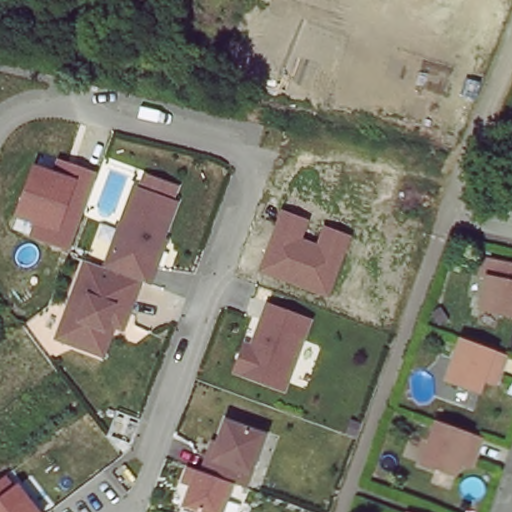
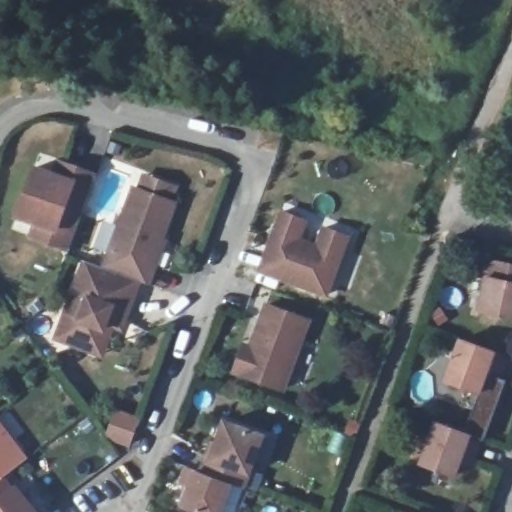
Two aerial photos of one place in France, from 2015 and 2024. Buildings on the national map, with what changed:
unchanged [(55,170),(60,156),(98,169),(68,250),(30,238),(33,223),(15,216),(32,163),(55,170)]
unchanged [(152,288),(140,284),(125,333),(119,331),(104,360),(55,339),(85,258),(105,265),(130,186),(180,207),(152,288)]
unchanged [(278,208),(310,219),(303,237),(318,243),(325,223),(352,234),(329,296),(259,271),(278,208)]
unchanged [(512,258),(512,311),(472,301),(480,268),(472,266),(477,249),(512,258)]
unchanged [(287,397),(230,378),(244,340),(248,343),(264,303),(314,322),(287,397)]
unchanged [(475,373),(470,385),(436,373),(452,332),(495,348),(488,369),(485,376),(475,373)]
new [(110,437),(107,437),(117,411),(140,420),(138,424),(130,445),(110,437)]
unchanged [(247,491),(202,472),(222,417),(270,436),(247,491)]
new [(7,473),(0,478),(0,422),(27,459),(7,473)]
unchanged [(471,465),(466,476),(432,464),(448,423),(465,429),(492,440),(485,461),(482,469),(471,465)]
unchanged [(181,507),(188,485),(179,483),(185,466),(202,472),(233,485),(223,512),(197,512),(181,507)]
unchanged [(38,512),(0,512),(0,478),(7,473),(38,512)]
unchanged [(399,509),(406,512),(398,512),(399,509)]

